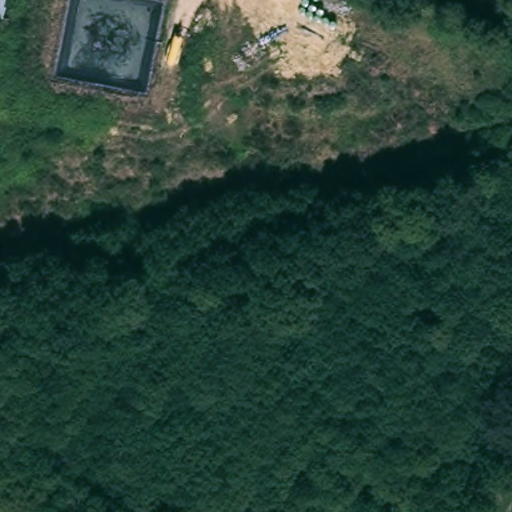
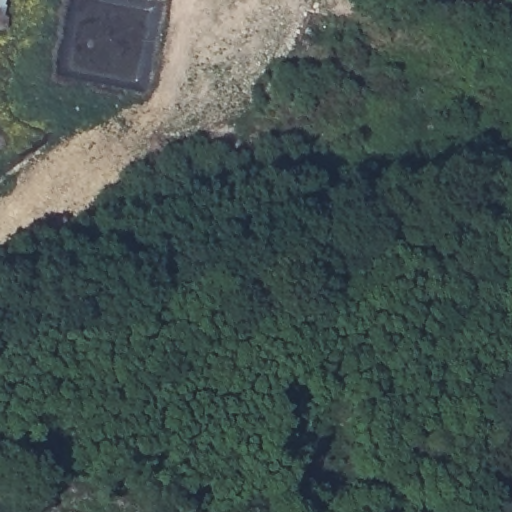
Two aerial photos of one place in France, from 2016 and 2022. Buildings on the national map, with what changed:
unchanged [(0,2),(0,0),(12,0),(12,4),(0,2)]

